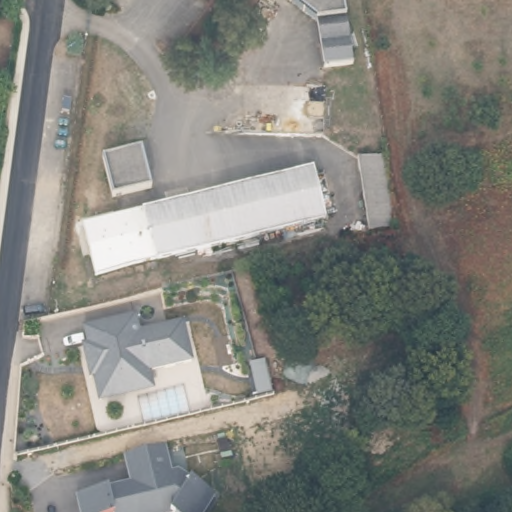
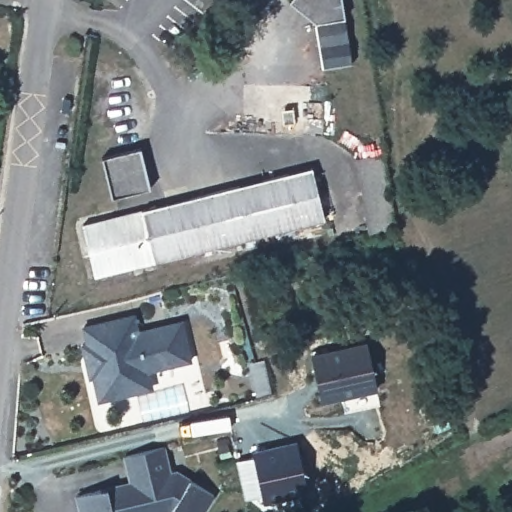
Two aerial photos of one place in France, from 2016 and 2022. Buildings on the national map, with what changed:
unchanged [(326,69),(319,25),(288,3),(291,0),(346,0),(356,66),(326,69)]
unchanged [(143,147),(153,189),(113,197),(104,155),(143,147)]
unchanged [(389,229),(366,232),(358,159),(383,156),(389,229)]
unchanged [(313,171),(325,222),(95,276),(84,225),(313,171)]
unchanged [(96,400),(93,385),(91,377),(87,378),(83,364),(78,347),(83,346),(79,329),(129,317),(133,334),(177,323),(188,362),(144,371),(145,378),(148,388),(96,400)]
new [(348,407),(345,390),(321,395),(312,351),(368,339),(377,384),(371,385),(374,402),(348,407)]
new [(299,442),(309,500),(258,512),(251,512),(239,460),(269,453),(268,448),(299,442)]
unchanged [(162,451),(168,476),(175,474),(212,496),(203,512),(163,512),(159,510),(151,512),(80,512),(78,507),(76,500),(118,489),(122,491),(131,489),(123,460),(162,451)]

